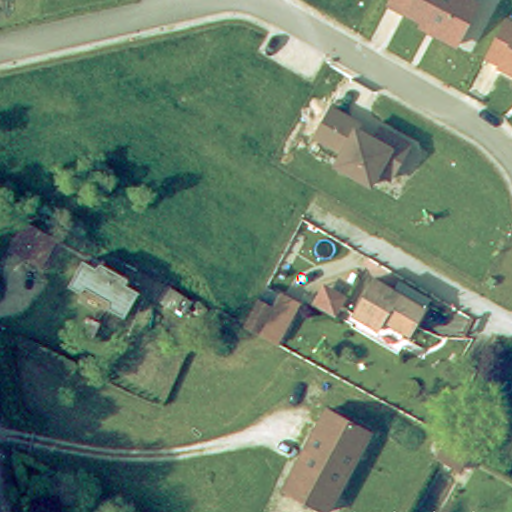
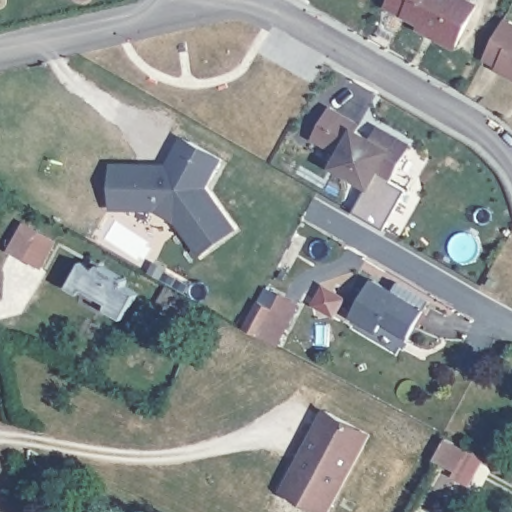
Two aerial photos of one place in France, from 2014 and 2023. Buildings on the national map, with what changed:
unchanged [(461,44),(389,5),(392,0),(472,0),(482,5),(461,44)]
unchanged [(512,24),(512,75),(489,61),(509,22),(512,24)]
unchanged [(364,125),(363,128),(373,134),(379,124),(409,143),(390,180),(380,175),(371,190),(332,168),(341,154),(311,138),(329,105),(364,125)]
new [(223,157),(209,184),(241,227),(201,254),(176,220),(153,210),(110,210),(110,161),(168,163),(181,136),(223,157)]
new [(406,189),(386,227),(356,210),(368,188),(371,190),(380,175),(390,180),(406,189)]
unchanged [(13,266),(28,240),(57,258),(43,284),(13,266)]
unchanged [(96,267),(101,259),(131,278),(126,284),(138,293),(125,317),(109,309),(111,302),(86,288),(82,294),(70,288),(84,260),(96,267)]
unchanged [(403,329),(377,314),(372,323),(346,309),(353,295),(366,273),(419,303),(405,325),(403,329)]
new [(324,284),(346,297),(336,315),(314,301),(324,284)]
unchanged [(241,329),(258,302),(271,309),(276,300),(279,294),(299,305),(296,312),(275,348),(241,329)]
unchanged [(312,431),(324,409),(369,433),(324,511),(287,491),(281,487),(312,431)]
unchanged [(447,438),(476,452),(462,479),(434,462),(447,438)]

